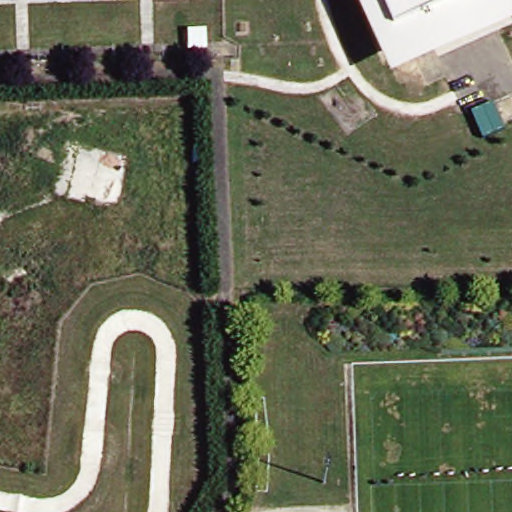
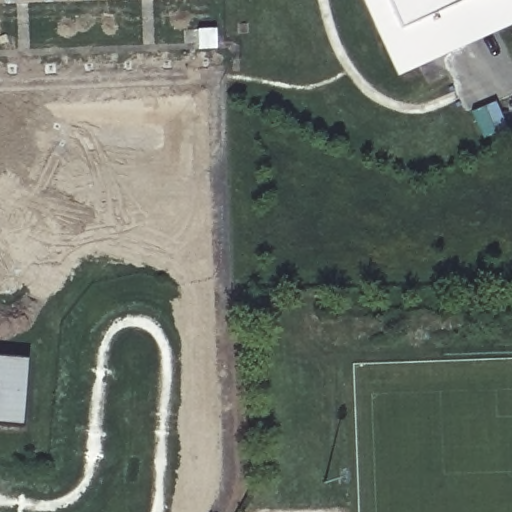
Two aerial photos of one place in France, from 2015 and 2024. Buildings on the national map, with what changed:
unchanged [(351,0),(372,0),(396,54),(512,2),(512,21),(385,78),(351,0)]
unchanged [(372,0),(512,0),(512,2),(396,54),(372,0)]
new [(0,430),(0,358),(27,361),(22,432),(0,430)]

